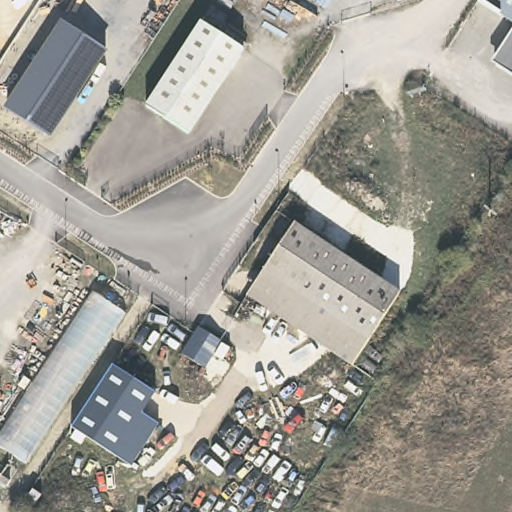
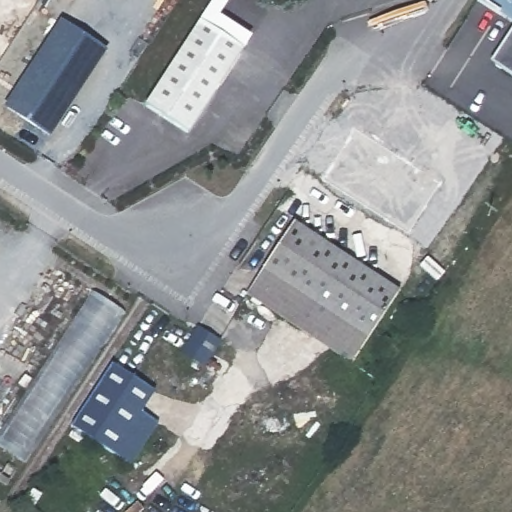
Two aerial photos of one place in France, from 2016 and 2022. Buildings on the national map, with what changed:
unchanged [(478,0),(512,0),(512,24),(477,2),(478,0)]
unchanged [(242,47),(186,131),(145,103),(201,21),(242,47)]
unchanged [(100,52),(43,136),(1,107),(58,24),(100,52)]
unchanged [(512,30),(512,76),(492,62),(512,30)]
unchanged [(401,293),(354,363),(267,307),(245,293),(262,267),(291,222),(401,293)]
unchanged [(129,315),(30,462),(0,446),(0,427),(88,294),(129,315)]
unchanged [(233,350),(223,362),(212,357),(205,367),(203,376),(185,388),(167,375),(197,327),(233,350)]
unchanged [(157,391),(142,413),(160,423),(133,466),(73,427),(114,366),(157,391)]

